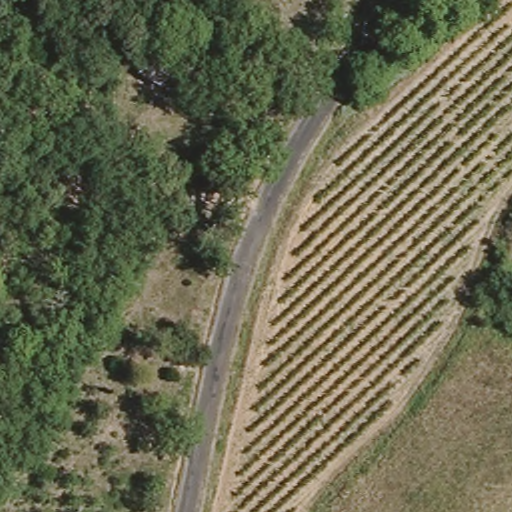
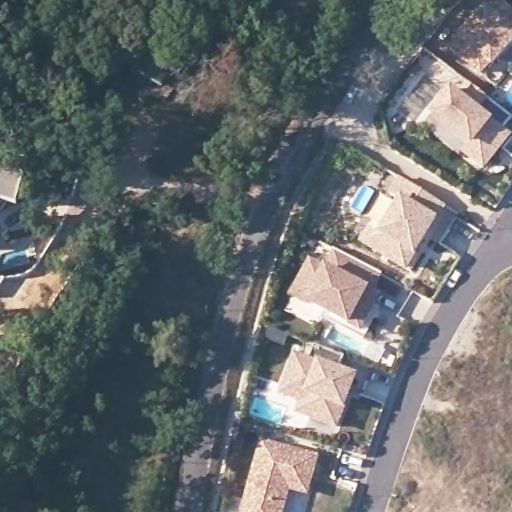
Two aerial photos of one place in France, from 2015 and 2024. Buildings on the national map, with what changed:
new [(512,8),(512,20),(506,27),(512,32),(512,41),(492,64),(489,62),(481,72),(452,47),(493,0),(502,0),(512,8)]
unchanged [(175,70),(162,87),(140,72),(152,55),(175,70)]
new [(495,150),(483,165),(463,150),(470,142),(433,112),(450,90),(458,96),(468,83),(490,100),(479,113),(501,131),(507,135),(495,150)]
new [(13,173),(5,204),(0,212),(0,170),(13,173)]
new [(384,235),(404,202),(394,196),(404,180),(447,206),(409,269),(376,249),(367,244),(375,229),(384,235)]
new [(363,332),(311,305),(296,297),(314,263),(329,271),(339,252),(383,275),(373,294),(381,298),(375,309),(372,316),(363,332)]
new [(299,358),(311,363),(317,347),(348,358),(341,374),(357,380),(339,429),(313,419),(320,400),(287,387),(299,358)]
new [(319,459),(309,495),(291,490),(285,512),(248,512),(266,445),(319,459)]

